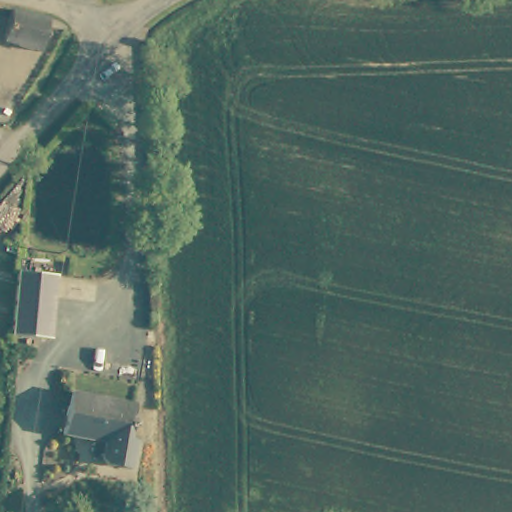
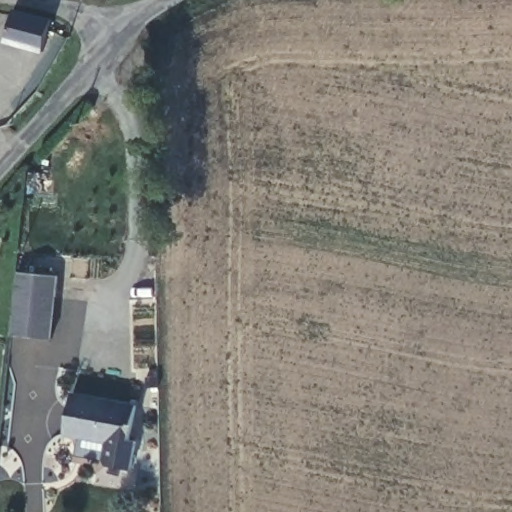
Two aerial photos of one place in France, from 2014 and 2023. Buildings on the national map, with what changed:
unchanged [(13,12),(15,10),(54,23),(41,54),(4,42),(13,12)]
unchanged [(18,275),(57,278),(51,342),(12,339),(18,275)]
unchanged [(132,466),(106,462),(103,457),(105,440),(64,434),(71,390),(135,402),(129,436),(136,438),(132,466)]

